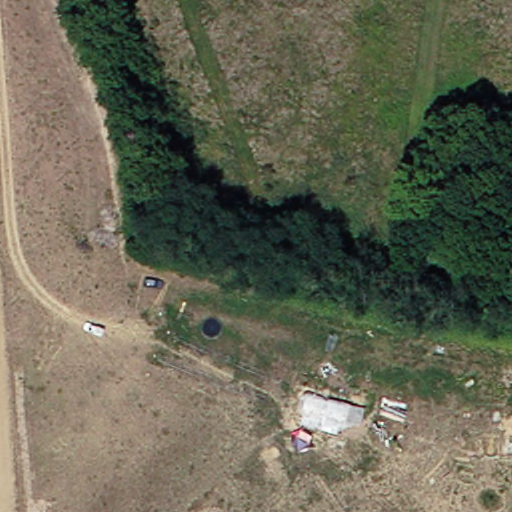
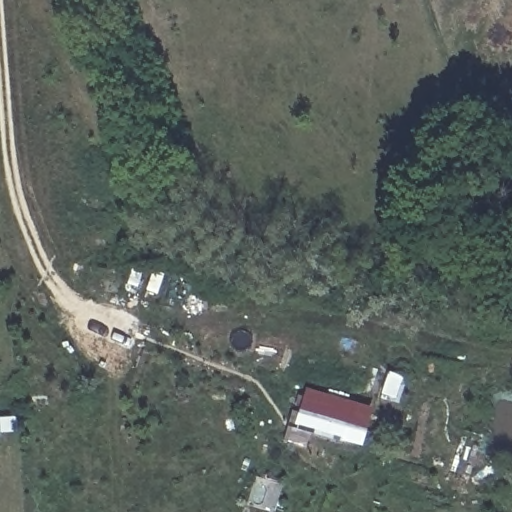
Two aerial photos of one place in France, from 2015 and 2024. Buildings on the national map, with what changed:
new [(355,402),(354,407),(367,411),(361,431),(349,426),(345,438),(295,423),(305,387),(355,402)]

